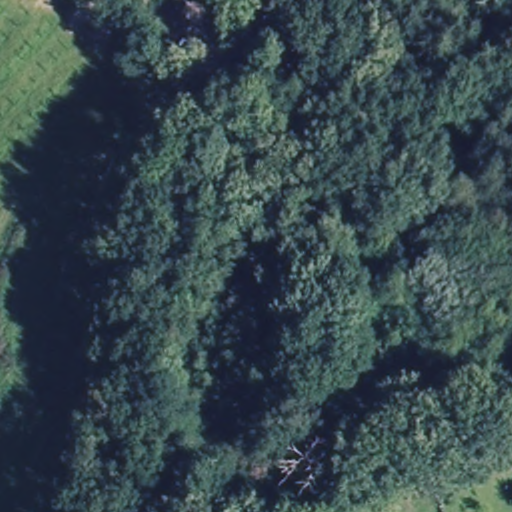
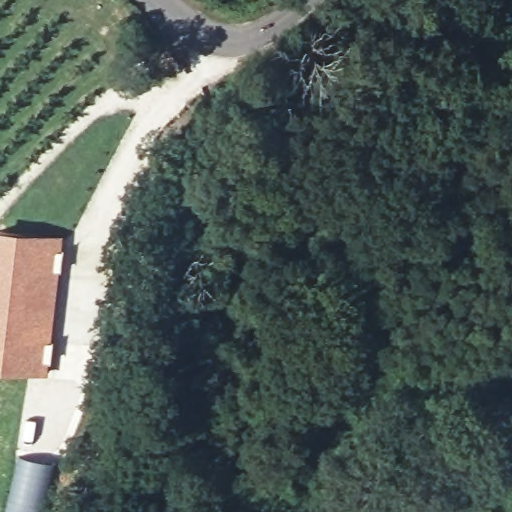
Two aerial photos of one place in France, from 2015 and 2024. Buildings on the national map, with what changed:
new [(63,233),(49,373),(0,368),(0,228),(63,233)]
new [(44,460),(42,468),(49,470),(42,504),(33,502),(31,512),(15,512),(9,506),(22,457),(35,458),(44,460)]

